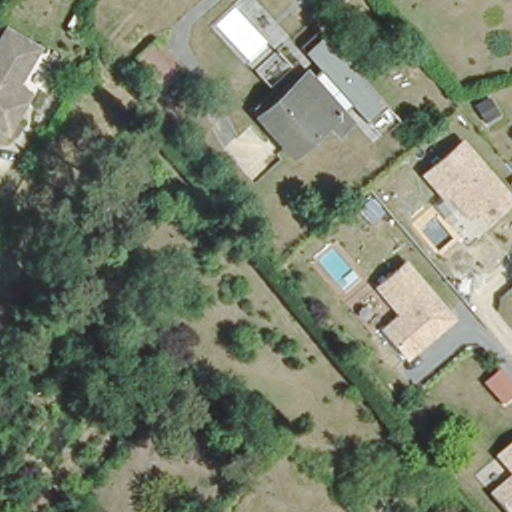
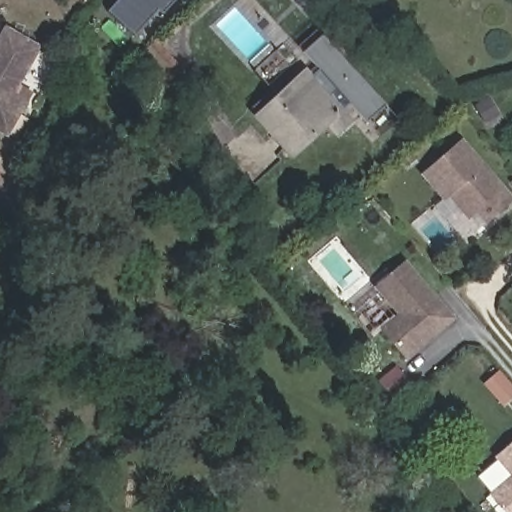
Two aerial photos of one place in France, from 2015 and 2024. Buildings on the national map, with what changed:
new [(155,10),(133,35),(107,10),(116,0),(172,0),(160,14),(155,10)]
unchanged [(39,42),(17,85),(28,94),(8,136),(0,132),(0,21),(39,42)]
unchanged [(317,75),(322,70),(305,51),(326,33),(388,105),(369,122),(351,102),(345,107),(317,75)]
unchanged [(182,66),(161,85),(133,53),(154,35),(182,66)]
unchanged [(308,63),(317,75),(345,107),(349,112),(329,130),(322,122),(292,159),(249,111),(308,63)]
unchanged [(512,195),(512,203),(487,225),(477,215),(469,221),(448,197),(444,202),(421,175),(464,139),(512,195)]
unchanged [(457,318),(408,361),(381,330),(397,315),(376,288),(407,260),(457,318)]
unchanged [(512,512),(506,512),(490,495),(511,476),(495,456),(512,442),(512,512)]

